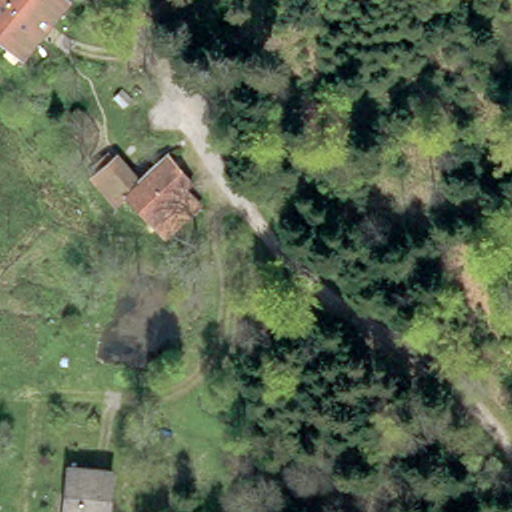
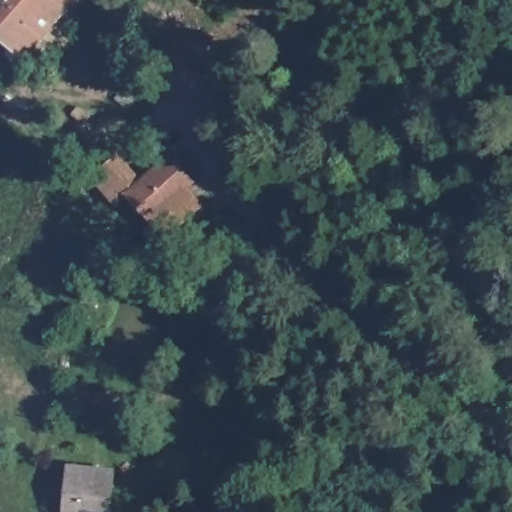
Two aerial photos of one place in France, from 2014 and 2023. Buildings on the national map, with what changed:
unchanged [(67,0),(82,0),(96,11),(77,27),(59,12),(17,62),(0,48),(0,0),(64,0),(66,2),(67,0)]
unchanged [(194,175),(167,214),(173,219),(168,225),(160,220),(158,224),(144,213),(133,205),(170,159),(194,175)]
unchanged [(65,512),(67,467),(112,470),(110,512),(65,512)]

